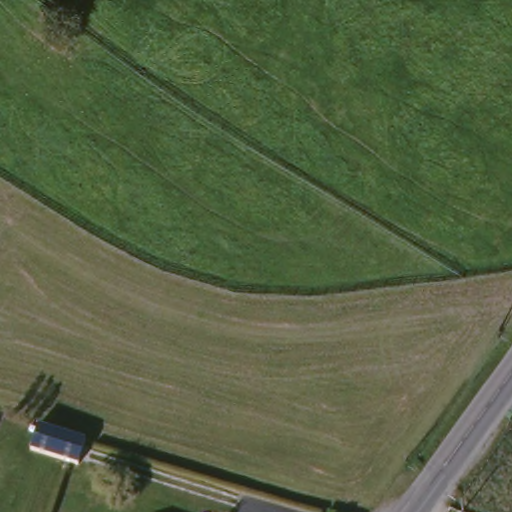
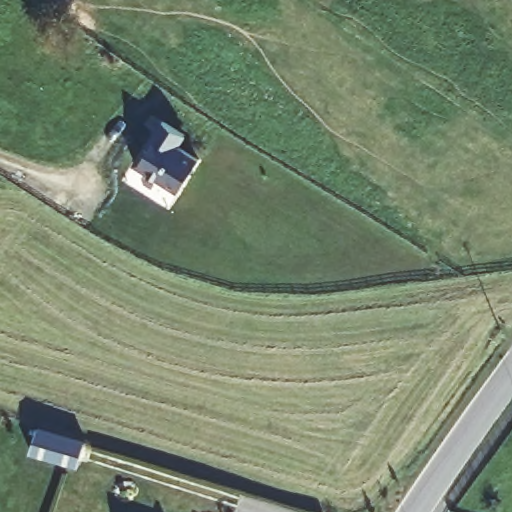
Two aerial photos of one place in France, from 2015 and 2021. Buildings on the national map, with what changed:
new [(189,134),(181,145),(200,158),(179,192),(133,163),(161,117),(189,134)]
unchanged [(76,468),(30,454),(39,426),(85,440),(76,468)]

